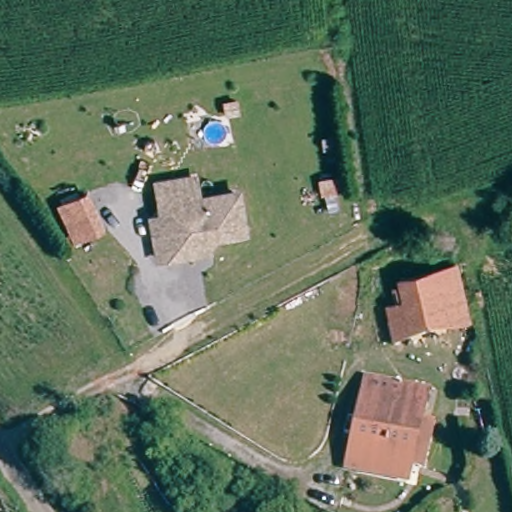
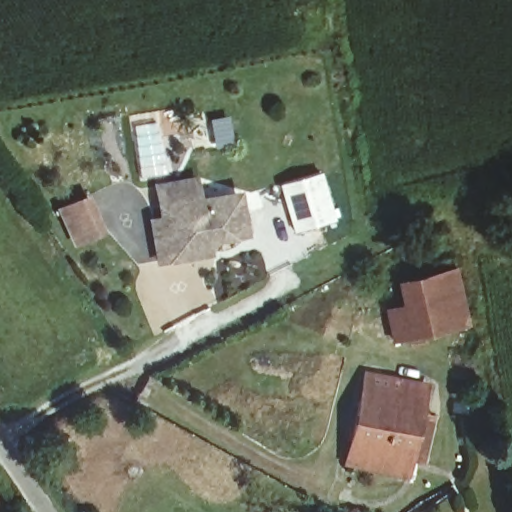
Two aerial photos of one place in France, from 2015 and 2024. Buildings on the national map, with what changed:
new [(280,186),(322,173),(337,221),(294,235),(280,186)]
unchanged [(170,220),(167,209),(163,187),(200,179),(205,200),(240,192),(245,195),(252,227),(249,233),(225,238),(217,246),(219,252),(170,263),(165,240),(160,222),(170,220)]
unchanged [(81,243),(62,208),(82,197),(90,193),(109,229),(101,233),(81,243)]
unchanged [(470,322),(446,330),(400,346),(389,315),(405,310),(397,289),(429,279),(453,271),(470,322)]
unchanged [(370,375),(424,385),(409,480),(350,467),(370,375)]

